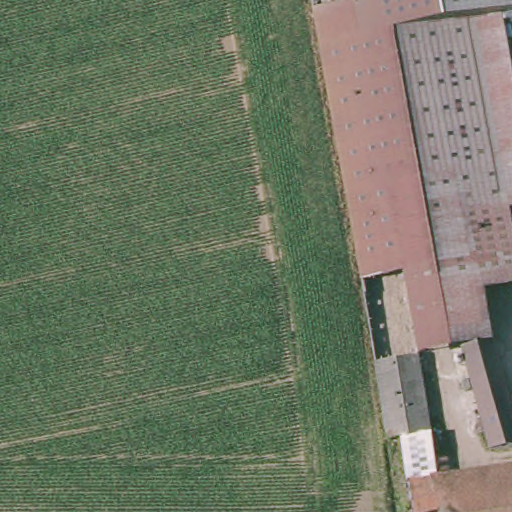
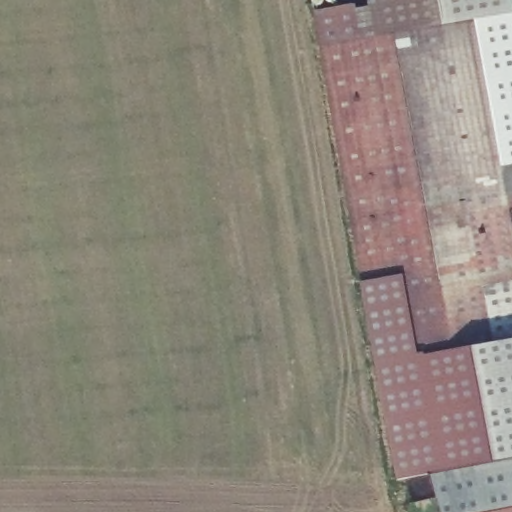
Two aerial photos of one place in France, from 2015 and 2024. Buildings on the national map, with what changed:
unchanged [(512,7),(512,12),(501,15),(363,39),(357,4),(374,0),(511,0),(512,7)]
unchanged [(357,4),(363,39),(501,15),(512,77),(512,208),(509,208),(512,221),(512,283),(483,289),(492,341),(419,354),(427,406),(432,434),(438,479),(410,484),(403,438),(389,440),(385,418),(357,245),(314,12),(357,4)]
new [(501,15),(512,12),(512,77),(501,15)]
new [(492,341),(483,289),(512,283),(512,337),(492,341)]
new [(432,480),(438,479),(432,434),(427,406),(419,354),(492,341),(512,337),(512,512),(442,512),(442,511),(436,512),(412,512),(410,484),(432,480)]
demolished [(512,406),(512,448),(489,452),(474,394),(473,389),(463,352),(475,349),(495,344),(512,406)]
demolished [(512,468),(512,512),(415,512),(410,484),(438,479),(512,468)]

